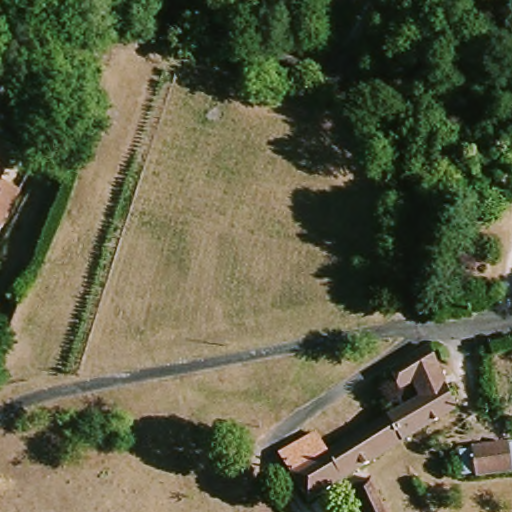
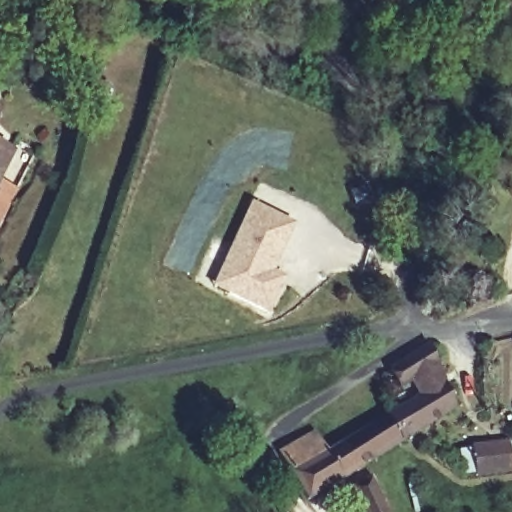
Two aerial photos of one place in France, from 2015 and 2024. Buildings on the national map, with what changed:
unchanged [(0,153),(0,141),(5,144),(0,153)]
unchanged [(0,212),(0,174),(15,181),(0,212)]
new [(295,224),(269,281),(281,287),(269,311),(230,294),(205,285),(247,199),(295,224)]
unchanged [(364,462),(306,493),(282,448),(317,430),(325,444),(367,421),(386,409),(414,393),(406,378),(395,382),(394,378),(386,380),(387,366),(425,338),(435,356),(439,377),(452,400),(400,433),(381,446),(364,457),(364,462)]
unchanged [(504,467),(467,471),(464,441),(502,438),(504,467)]
unchanged [(346,483),(364,474),(383,512),(358,512),(346,483)]

